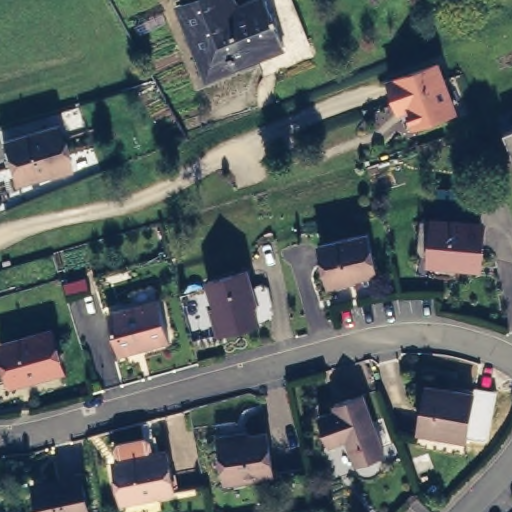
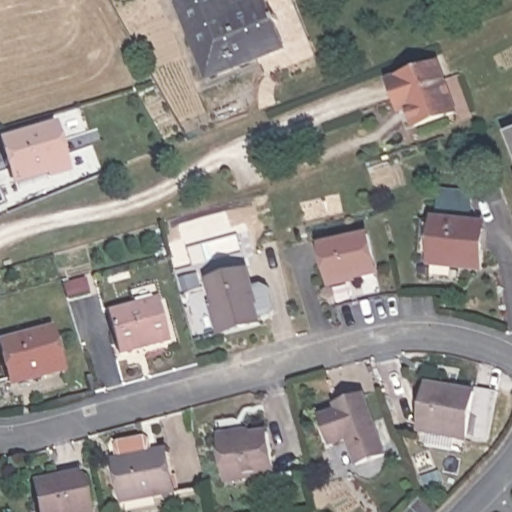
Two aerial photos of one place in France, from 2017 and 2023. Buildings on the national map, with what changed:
unchanged [(197,0),(213,0),(215,6),(223,3),(227,0),(269,0),(293,61),(244,81),(236,62),(188,81),(161,13),(197,0)]
unchanged [(395,96),(389,78),(438,61),(454,109),(414,124),(407,106),(399,108),(395,96)]
unchanged [(51,173),(49,168),(15,179),(3,138),(38,128),(56,123),(69,166),(54,171),(51,173)]
unchanged [(512,139),(509,131),(512,131),(512,139)]
unchanged [(436,255),(439,217),(487,222),(482,263),(456,261),(436,259),(436,255)]
unchanged [(326,246),(373,235),(381,273),(334,284),(326,246)]
unchanged [(210,305),(214,304),(208,281),(247,271),(254,298),(252,299),(258,324),(240,328),(218,334),(210,305)]
unchanged [(108,315),(158,301),(169,342),(119,356),(108,315)]
unchanged [(0,345),(49,331),(61,372),(30,381),(28,375),(9,380),(0,345)]
unchanged [(463,440),(419,433),(427,388),(428,383),(455,389),(472,391),(463,440)]
unchanged [(336,411),(334,405),(363,395),(384,454),(356,465),(346,440),(329,445),(319,416),(336,411)]
unchanged [(273,479),(228,485),(221,444),(219,439),(249,434),(249,439),(266,437),(273,479)]
unchanged [(118,464),(115,451),(118,446),(146,441),(150,445),(153,458),(166,455),(174,495),(123,505),(114,465),(118,464)]
unchanged [(81,473),(89,512),(41,512),(34,484),(81,473)]

